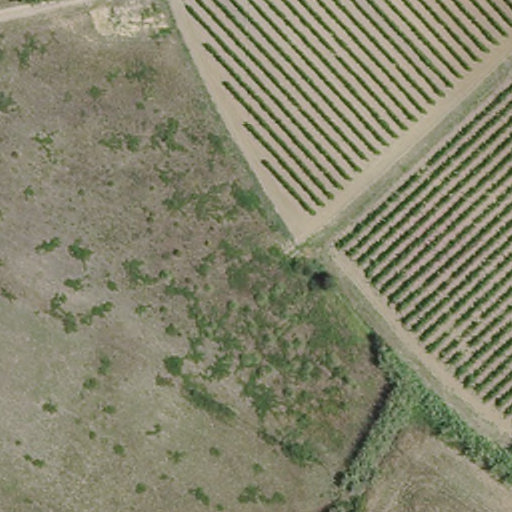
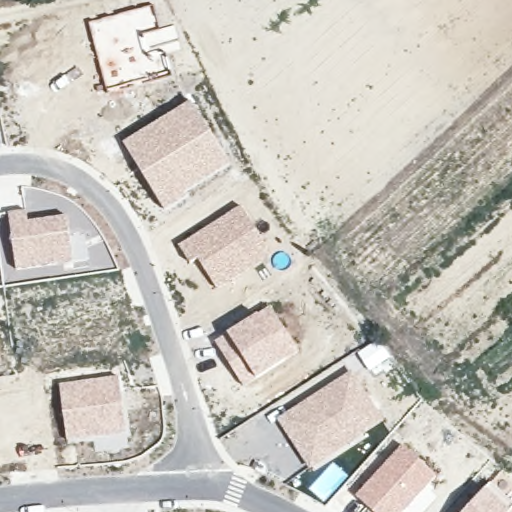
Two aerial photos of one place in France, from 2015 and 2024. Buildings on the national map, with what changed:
new [(88,23),(153,4),(171,72),(107,90),(88,23)]
new [(190,99),(230,164),(163,209),(122,141),(190,99)]
new [(240,204),(271,254),(216,289),(196,259),(189,264),(177,244),(240,204)]
new [(25,209),(27,220),(66,214),(73,260),(15,270),(7,213),(25,209)]
new [(270,304),(298,352),(243,388),(212,341),(270,304)]
new [(350,369),(385,420),(310,472),(275,419),(350,369)]
new [(118,374),(126,435),(93,439),(66,442),(57,383),(118,374)]
new [(401,443),(436,475),(402,512),(372,512),(353,495),(401,443)]
new [(512,504),(512,512),(461,512),(488,483),(512,504)]

